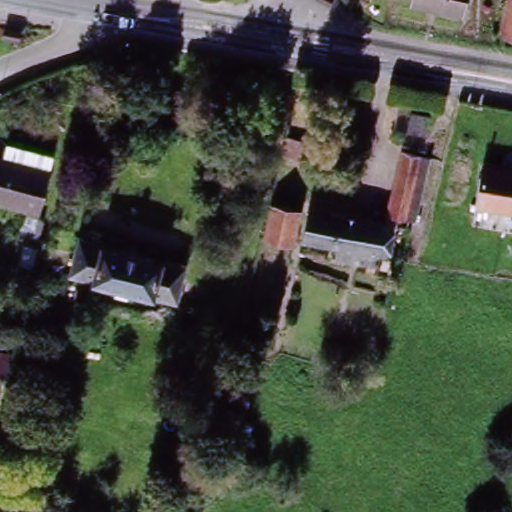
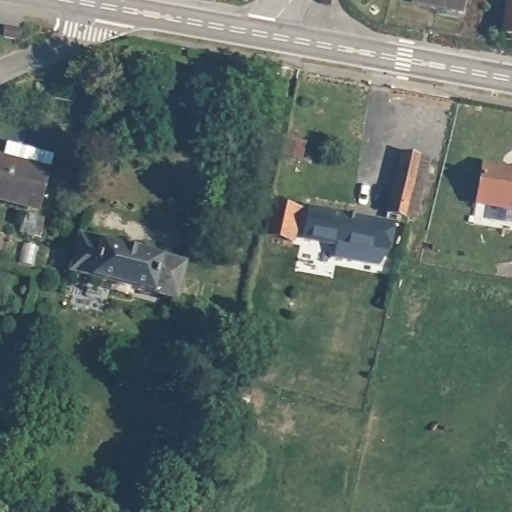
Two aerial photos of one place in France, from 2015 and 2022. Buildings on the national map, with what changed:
unchanged [(459,7),(415,1),(415,0),(460,0),(459,7)]
unchanged [(501,40),(507,0),(512,0),(512,41),(501,40)]
unchanged [(406,132),(412,109),(435,117),(431,138),(406,132)]
unchanged [(393,207),(410,151),(421,150),(431,154),(412,214),(402,212),(393,207)]
unchanged [(49,162),(39,212),(0,205),(0,162),(2,153),(49,162)]
unchanged [(512,170),(512,211),(477,205),(485,166),(512,170)]
unchanged [(297,210),(289,240),(267,234),(275,205),(297,210)]
unchanged [(388,225),(380,254),(304,235),(312,205),(388,225)]
unchanged [(185,265),(175,298),(67,266),(79,232),(185,265)]

